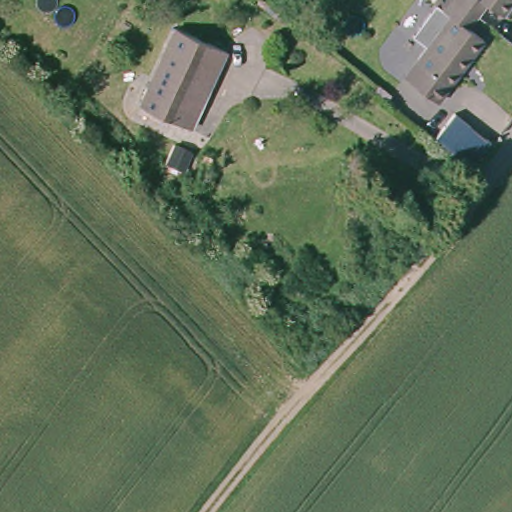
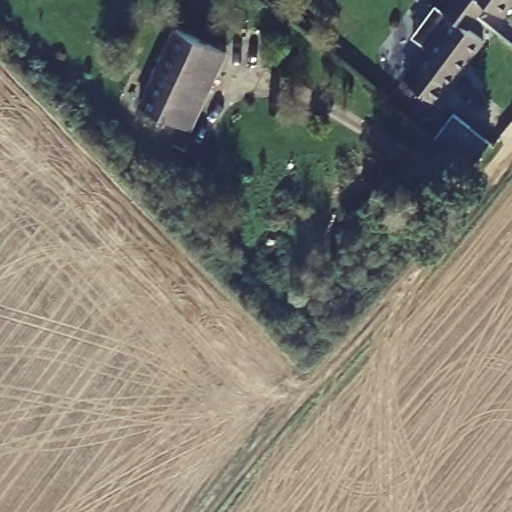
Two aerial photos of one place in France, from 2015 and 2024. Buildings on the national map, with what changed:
unchanged [(415,61),(450,15),(442,9),(448,0),(509,0),(500,13),(484,2),(476,13),(466,26),(481,37),(447,84),(435,100),(403,77),(415,61)]
unchanged [(180,119),(140,101),(175,23),(223,46),(206,86),(190,123),(180,119)]

